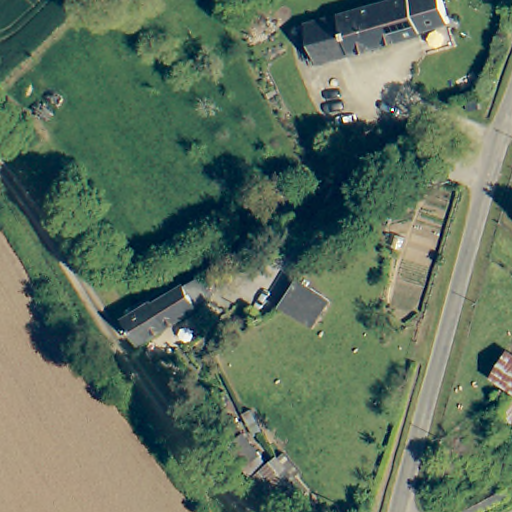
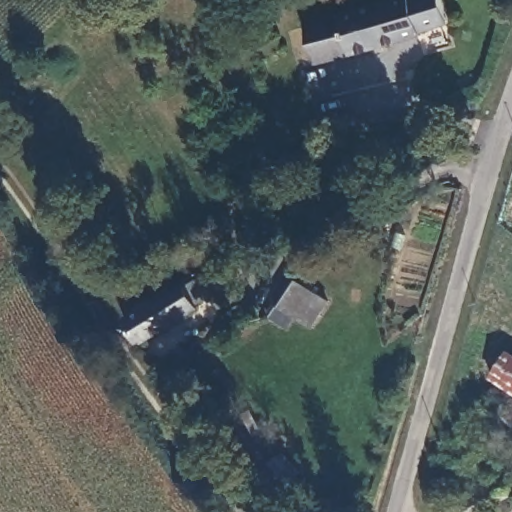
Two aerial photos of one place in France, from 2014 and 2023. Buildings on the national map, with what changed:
unchanged [(444,0),(450,19),(440,22),(352,51),(350,49),(317,60),(307,26),(305,21),(327,15),(373,0),(444,0)]
unchanged [(433,138),(428,140),(397,156),(389,142),(425,122),(433,138)]
unchanged [(330,300),(312,326),(277,303),(295,276),(330,300)]
unchanged [(206,293),(191,302),(193,307),(134,343),(119,319),(177,285),(196,278),(206,293)]
unchanged [(512,349),(512,385),(493,373),(508,347),(512,349)]
unchanged [(512,391),(512,415),(501,406),(512,391)]
unchanged [(240,422),(271,460),(277,451),(282,456),(287,449),(303,468),(300,471),(308,490),(283,512),(278,512),(218,454),(240,422)]
unchanged [(459,511),(456,503),(470,494),(473,499),(510,480),(512,484),(512,493),(479,512),(456,512),(459,511)]

